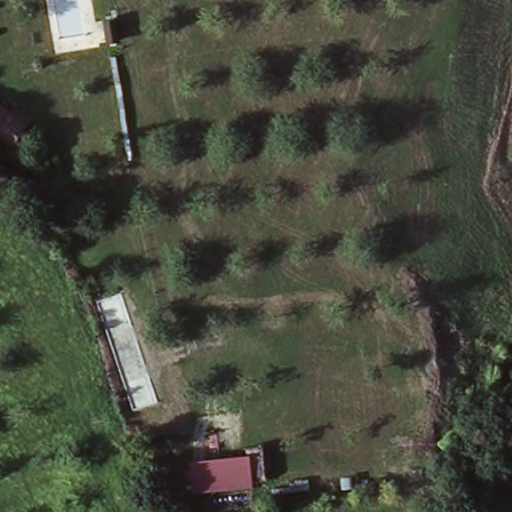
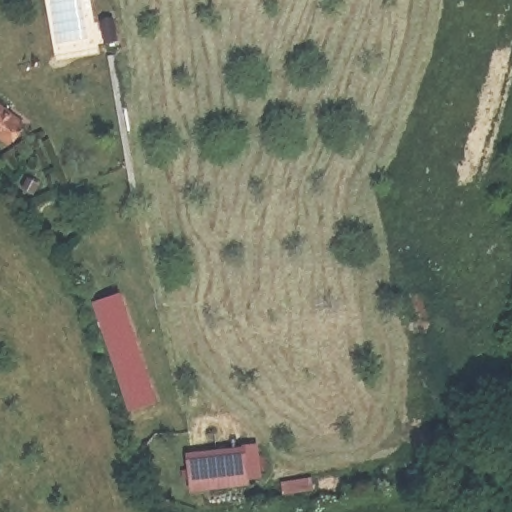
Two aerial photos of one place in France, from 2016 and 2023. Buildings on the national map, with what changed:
unchanged [(20,129),(6,148),(0,143),(0,113),(20,129)]
demolished [(127,286),(137,310),(110,321),(101,296),(127,286)]
new [(121,295),(155,407),(133,414),(95,305),(121,295)]
unchanged [(188,449),(251,443),(254,480),(190,487),(188,449)]

